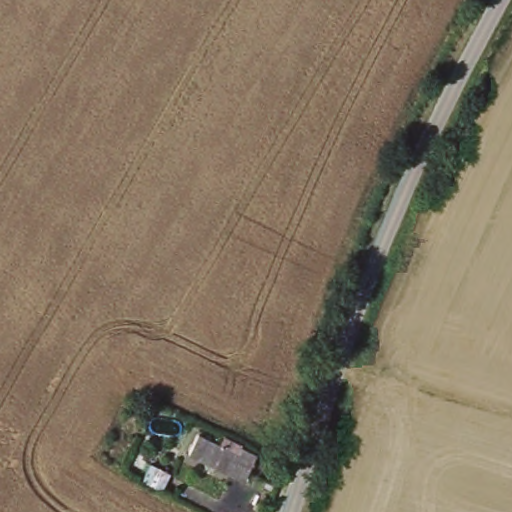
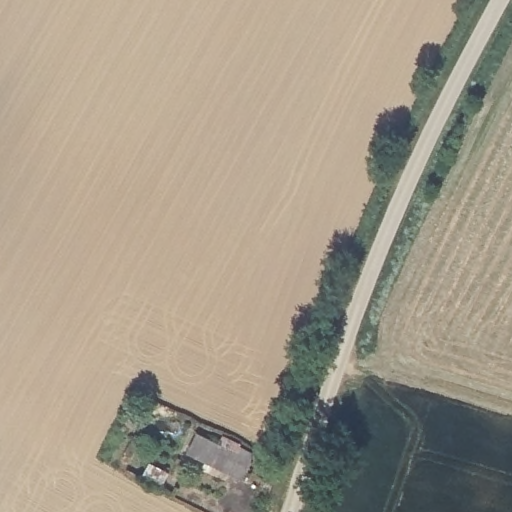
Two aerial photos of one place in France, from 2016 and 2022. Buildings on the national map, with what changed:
unchanged [(187,451),(197,430),(221,441),(223,436),(257,453),(244,478),(187,451)]

